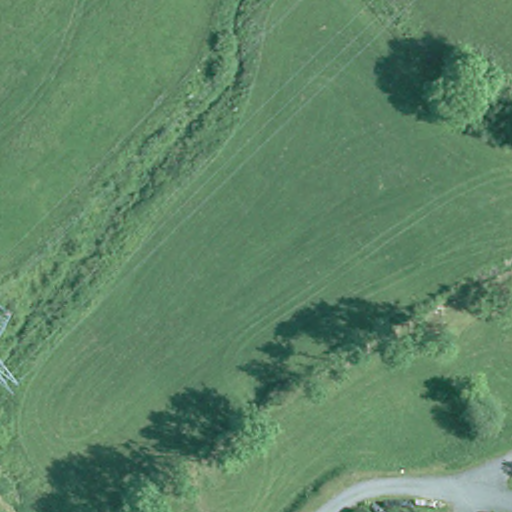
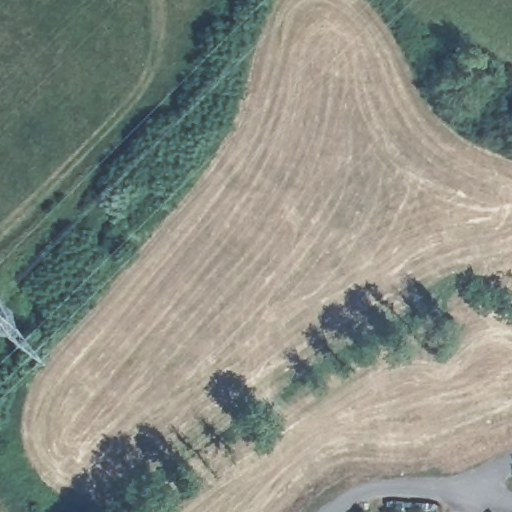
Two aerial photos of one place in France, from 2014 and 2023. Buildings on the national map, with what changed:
[]

